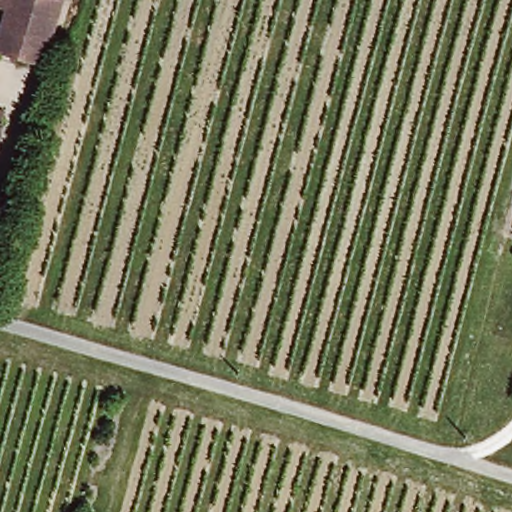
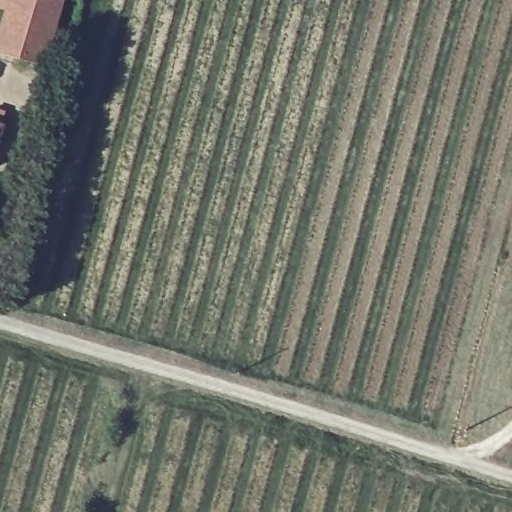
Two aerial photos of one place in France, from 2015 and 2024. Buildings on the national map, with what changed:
unchanged [(47,67),(0,55),(0,30),(7,0),(53,0),(62,3),(47,67)]

